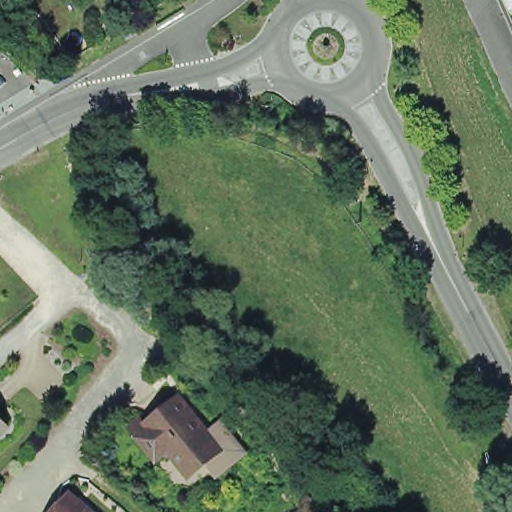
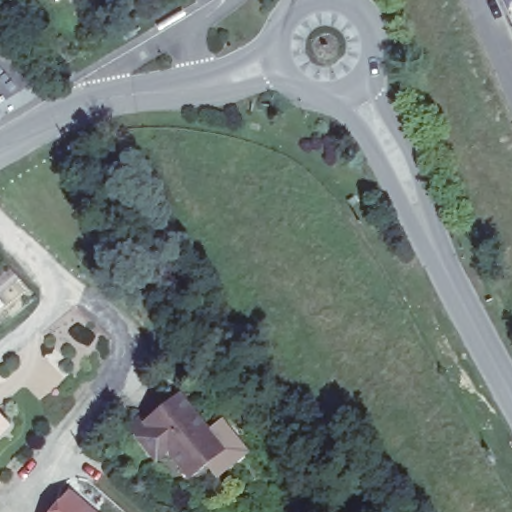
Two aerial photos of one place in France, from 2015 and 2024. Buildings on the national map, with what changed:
unchanged [(208,432),(209,430),(224,446),(208,460),(204,456),(186,470),(168,451),(158,460),(134,433),(128,425),(141,415),(148,421),(178,396),(208,432)]
unchanged [(0,440),(0,418),(10,429),(0,440)]
unchanged [(76,490),(95,512),(52,512),(76,490)]

